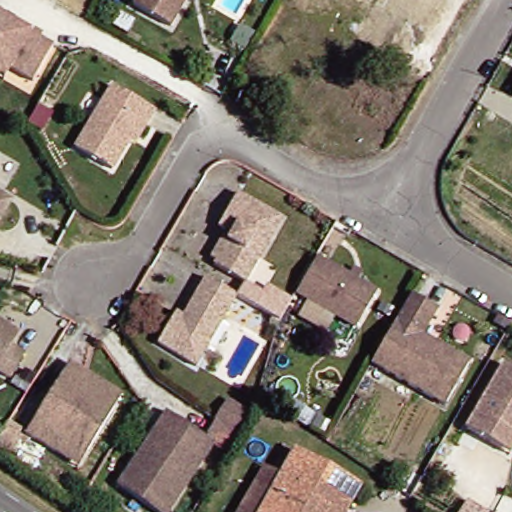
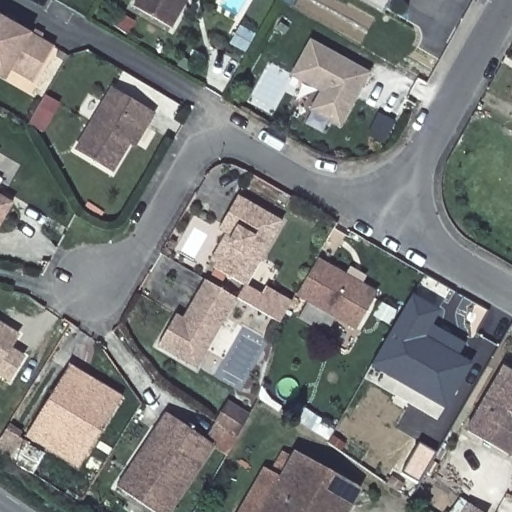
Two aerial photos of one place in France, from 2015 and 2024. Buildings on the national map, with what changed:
unchanged [(175,28),(137,7),(141,0),(191,0),(175,28)]
unchanged [(52,50),(31,86),(9,73),(2,83),(0,82),(0,20),(52,50)]
new [(311,39),(370,72),(340,124),(311,108),(321,89),(294,74),(311,39)]
unchanged [(160,112),(152,126),(147,123),(120,170),(84,148),(119,88),(160,112)]
unchanged [(0,224),(0,195),(2,196),(12,202),(0,224)]
unchanged [(221,227),(240,195),(285,220),(248,283),(216,265),(234,235),(221,227)]
unchanged [(379,294),(358,329),(300,295),(305,288),(307,283),(310,279),(315,270),(320,260),(379,294)]
unchanged [(200,357),(162,334),(180,304),(187,309),(203,282),(219,291),(234,300),(200,357)]
unchanged [(382,362),(387,353),(390,348),(392,344),(395,339),(400,331),(420,297),(446,312),(431,338),(443,346),(465,359),(440,402),(421,390),(390,372),(380,366),(382,362)]
unchanged [(21,331),(12,345),(26,353),(12,377),(0,369),(0,319),(21,331)]
unchanged [(505,368),(512,372),(512,457),(469,432),(505,368)]
unchanged [(55,456),(25,438),(66,371),(79,378),(81,375),(120,399),(113,412),(87,455),(78,470),(55,456)]
unchanged [(155,512),(119,487),(132,468),(156,432),(169,414),(216,446),(172,512),(155,512)]
unchanged [(297,449),(362,486),(348,512),(263,512),(295,455),(297,449)]
unchanged [(274,471),(285,450),(295,455),(263,512),(240,512),(266,466),(274,471)]
new [(481,512),(451,512),(460,498),(481,512)]

